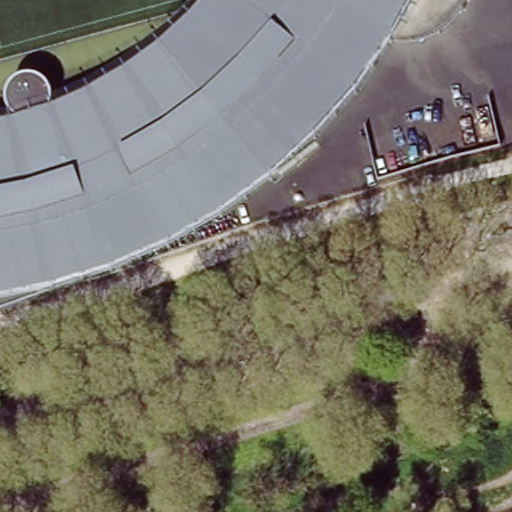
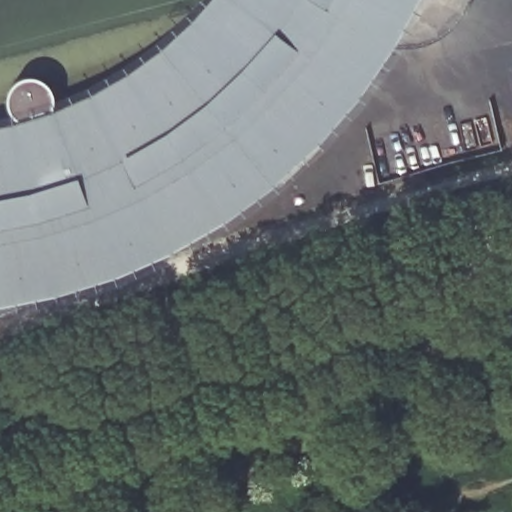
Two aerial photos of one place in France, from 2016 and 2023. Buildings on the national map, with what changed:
unchanged [(0,121),(11,119),(7,111),(5,100),(8,90),(18,81),(33,80),(45,85),(52,95),(53,106),(91,89),(135,63),(172,33),(200,4),(204,0),(421,0),(407,25),(378,73),(340,121),(303,161),(250,205),(200,238),(148,263),(97,283),(46,297),(0,313),(0,121)]

